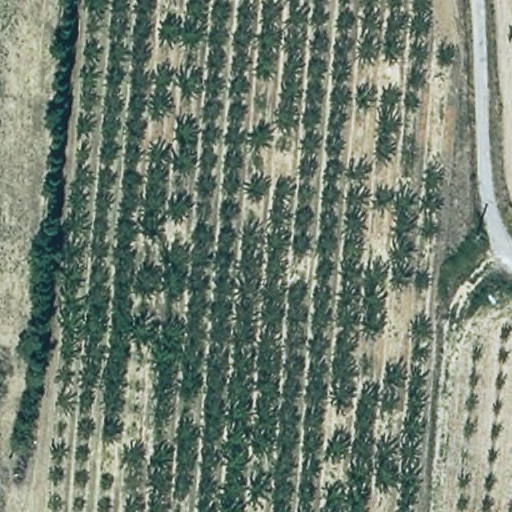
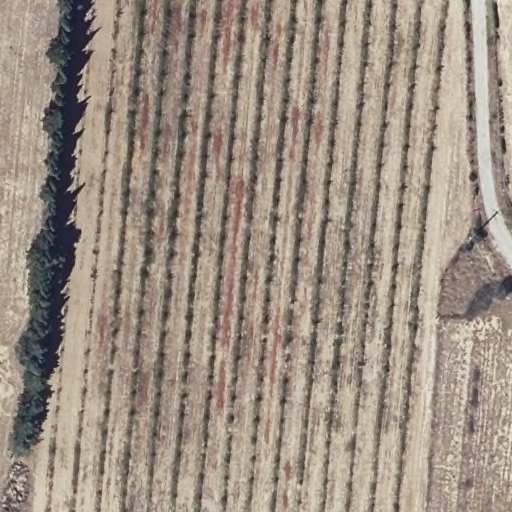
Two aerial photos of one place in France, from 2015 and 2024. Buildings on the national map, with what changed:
[]

